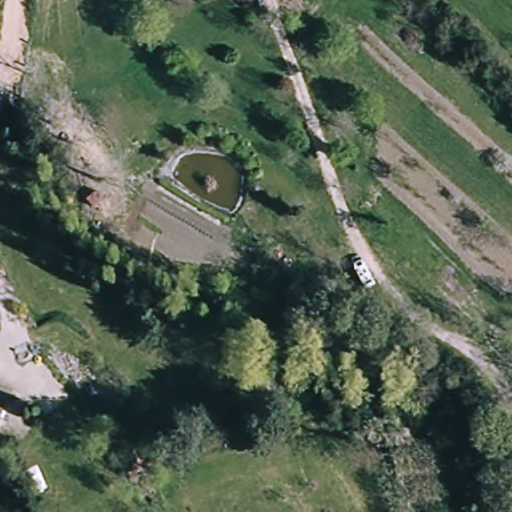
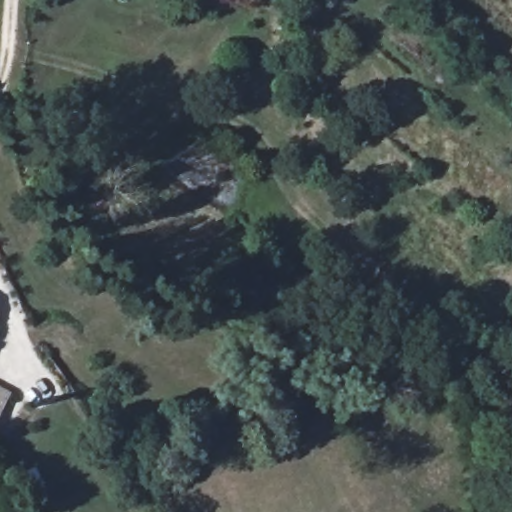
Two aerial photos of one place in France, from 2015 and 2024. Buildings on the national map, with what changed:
unchanged [(12,395),(0,419),(0,390),(12,395)]

